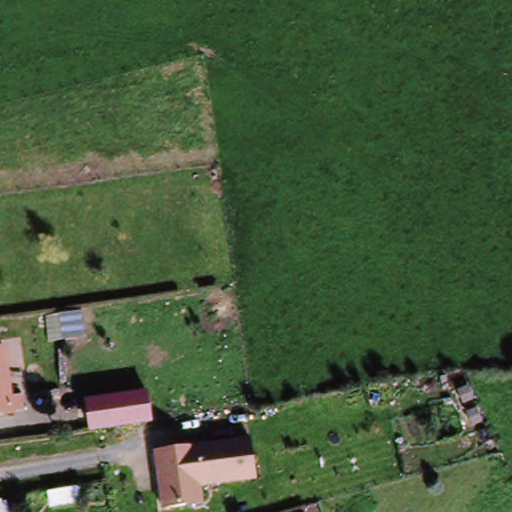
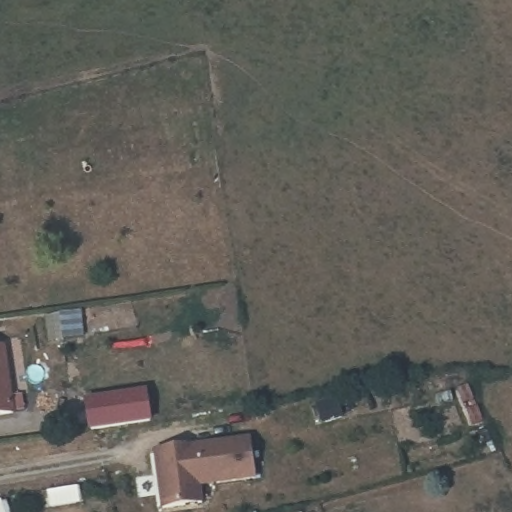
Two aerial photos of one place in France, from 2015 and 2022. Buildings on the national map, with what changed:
unchanged [(21,409),(0,412),(0,347),(10,345),(21,409)]
unchanged [(160,420),(90,430),(87,401),(155,391),(160,420)]
unchanged [(264,476),(208,486),(209,504),(170,510),(159,450),(259,437),(264,476)]
unchanged [(48,495),(76,490),(77,499),(71,501),(72,507),(51,511),(48,495)]

